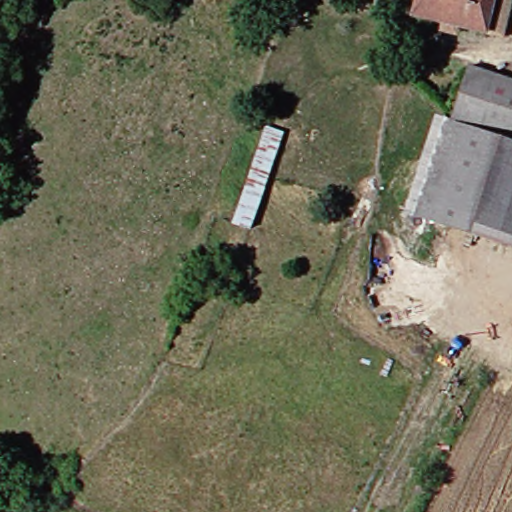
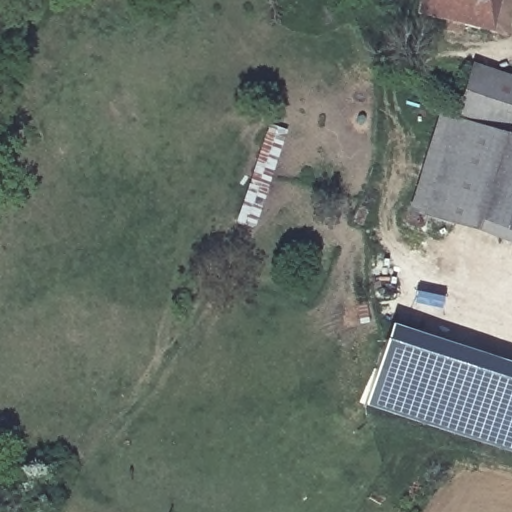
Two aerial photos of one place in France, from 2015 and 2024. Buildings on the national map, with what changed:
unchanged [(432,21),(436,0),(512,0),(512,11),(507,37),(432,21)]
unchanged [(449,154),(457,124),(457,121),(470,72),(512,83),(512,171),(449,154)]
unchanged [(270,127),(292,134),(261,231),(236,226),(270,127)]
unchanged [(512,171),(512,243),(432,222),(449,154),(512,171)]
new [(397,323),(512,362),(512,447),(372,399),(397,323)]

